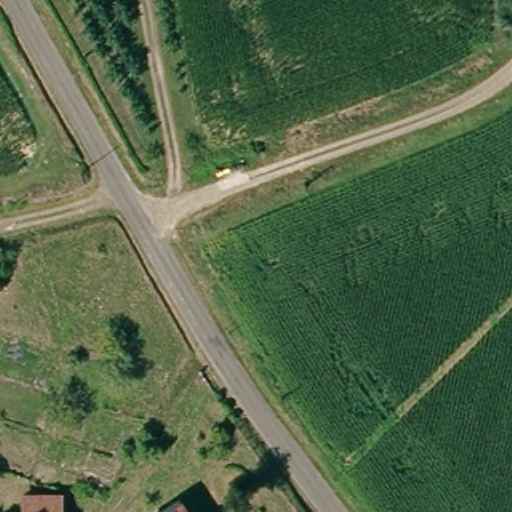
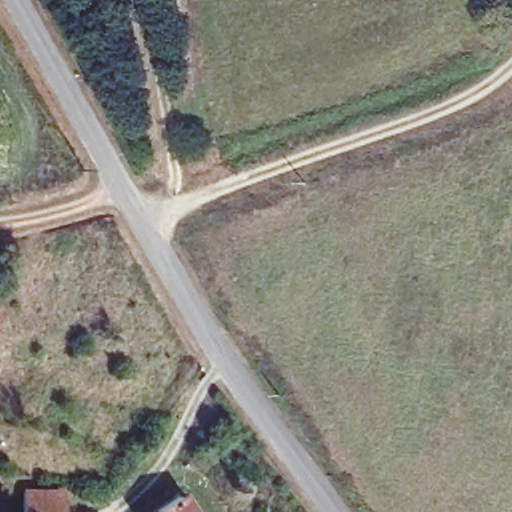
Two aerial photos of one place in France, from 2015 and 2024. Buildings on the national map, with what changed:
unchanged [(20,512),(19,494),(45,493),(57,493),(57,496),(58,512),(20,512)]
unchanged [(154,512),(174,498),(184,512),(154,512)]

